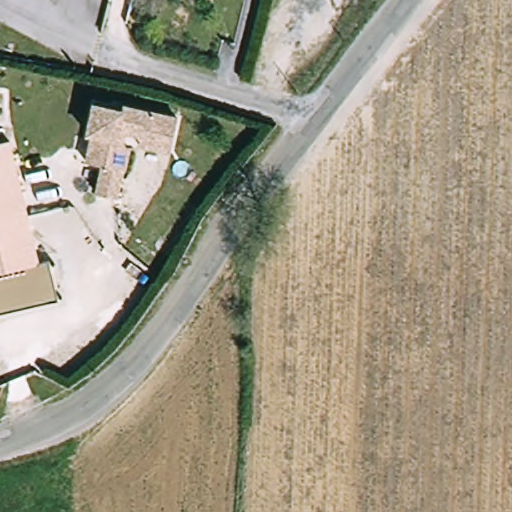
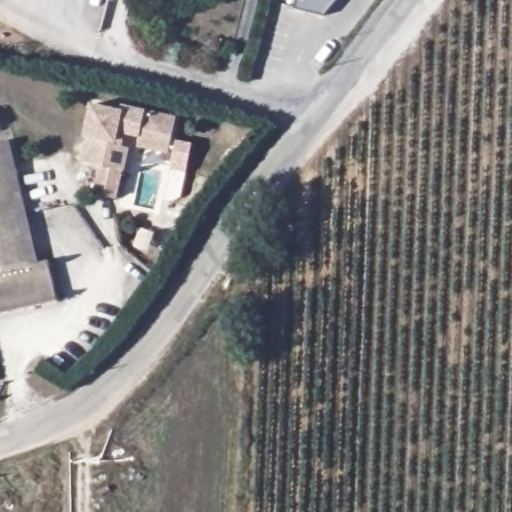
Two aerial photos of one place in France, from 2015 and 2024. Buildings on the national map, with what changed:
new [(323,15),(296,8),(298,0),(337,0),(323,15)]
unchanged [(170,157),(140,150),(142,136),(127,134),(125,146),(132,148),(122,200),(100,196),(105,168),(89,165),(95,140),(83,137),(93,101),(121,108),(123,103),(178,115),(170,157)]
unchanged [(49,262),(58,301),(0,315),(0,143),(12,140),(39,263),(49,262)]

